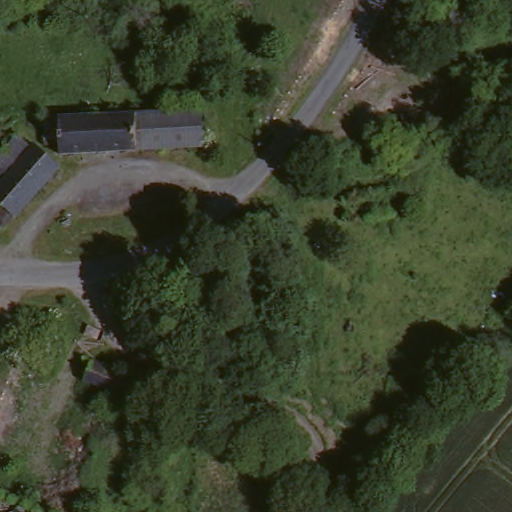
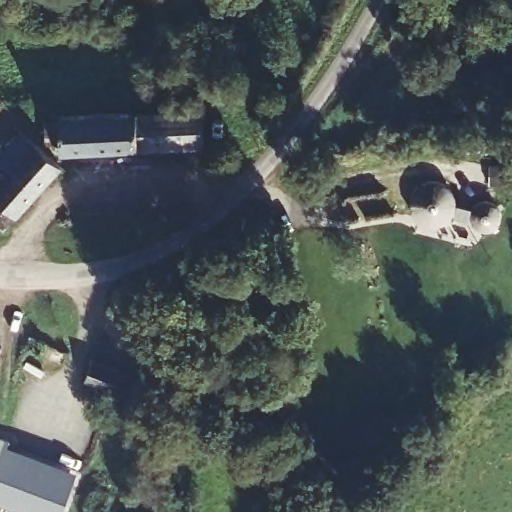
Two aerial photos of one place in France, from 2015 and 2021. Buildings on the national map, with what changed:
unchanged [(51,119),(68,119),(205,106),(206,114),(216,115),(218,145),(71,153),(70,141),(53,141),(51,119)]
unchanged [(19,138),(34,149),(56,165),(61,171),(12,216),(9,225),(0,231),(0,157),(19,138)]
unchanged [(117,389),(116,394),(84,382),(93,360),(124,372),(117,389)]
new [(10,437),(8,444),(77,471),(62,512),(24,512),(0,503),(0,433),(10,437)]
demolished [(53,512),(0,512),(0,491),(53,512)]

